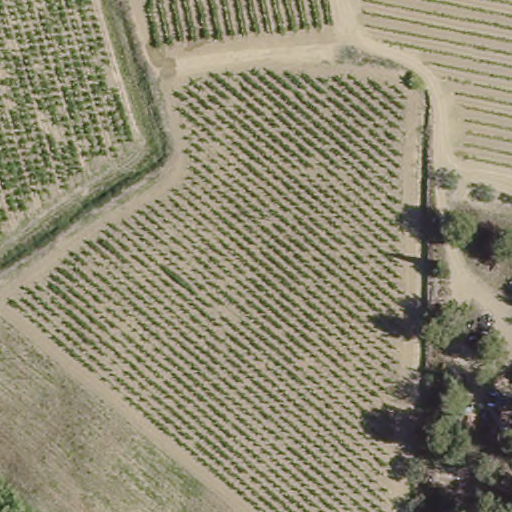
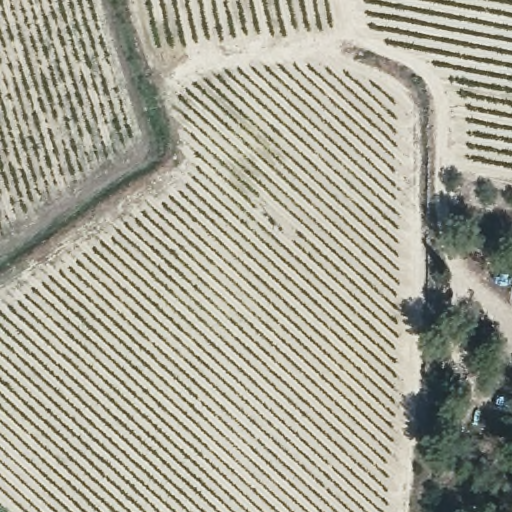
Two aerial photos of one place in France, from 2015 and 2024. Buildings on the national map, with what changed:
unchanged [(465,442),(462,477),(439,473),(442,444),(465,442)]

